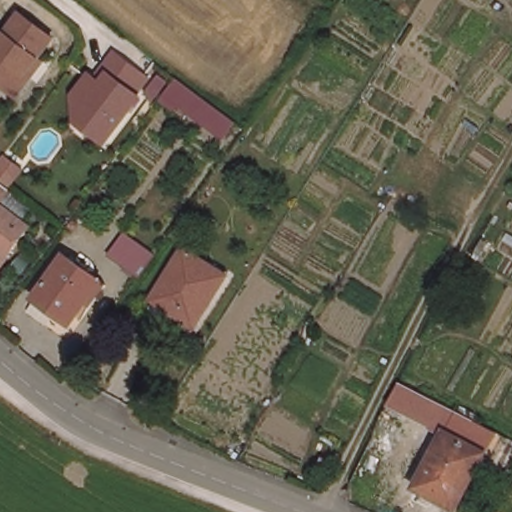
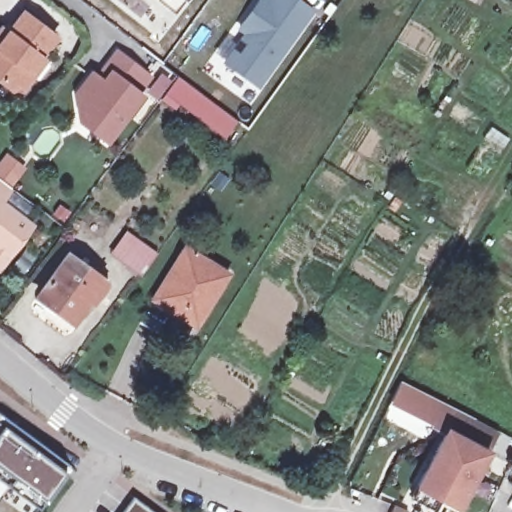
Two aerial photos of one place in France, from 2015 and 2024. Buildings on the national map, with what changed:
new [(178,6),(171,0),(184,0),(178,6)]
new [(243,35),(236,30),(259,0),(301,0),(316,11),(259,90),(221,63),(243,35)]
unchanged [(25,67),(29,71),(14,90),(0,79),(0,25),(4,29),(19,8),(51,32),(25,67)]
unchanged [(144,77),(133,94),(137,96),(103,141),(93,134),(91,123),(76,111),(73,94),(88,75),(93,79),(100,70),(113,53),(144,77)]
unchanged [(226,139),(211,128),(166,94),(178,76),(224,110),(239,121),(226,139)]
unchanged [(8,189),(0,199),(0,183),(8,189)]
unchanged [(27,226),(0,262),(0,206),(27,226)]
unchanged [(124,262),(111,253),(128,231),(139,240),(158,254),(142,275),(124,262)]
unchanged [(201,325),(161,300),(191,250),(232,275),(201,325)]
unchanged [(68,255),(104,280),(74,321),(39,295),(68,255)]
unchanged [(442,495),(424,486),(452,431),(438,424),(439,421),(405,403),(409,396),(401,392),(407,381),(414,385),(479,418),(478,421),(501,433),(469,495),(463,506),(442,495)]
new [(72,467),(67,474),(45,502),(39,511),(0,481),(0,414),(72,467)]
unchanged [(499,463),(512,438),(512,468),(512,469),(499,463)]
unchanged [(333,473),(319,467),(324,456),(338,462),(333,473)]
new [(154,512),(122,512),(133,497),(154,512)]

